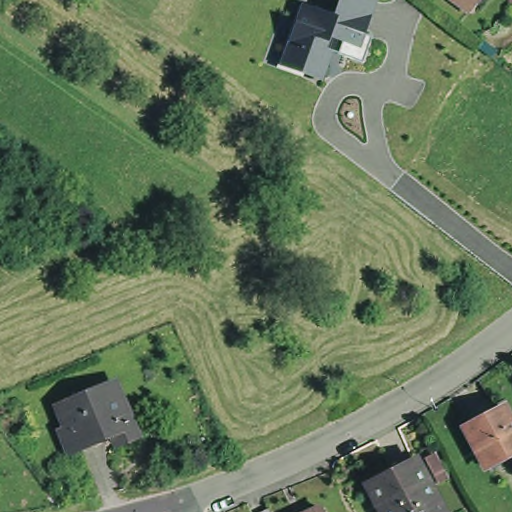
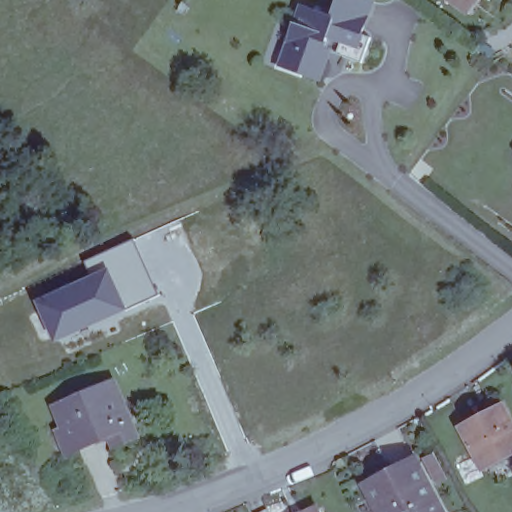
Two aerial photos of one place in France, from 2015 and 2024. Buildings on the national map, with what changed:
unchanged [(362,64),(338,57),(341,45),(337,43),(327,83),(279,69),(298,2),(330,10),(334,0),(374,0),(378,1),(362,64)]
unchanged [(458,0),(482,0),(474,11),(458,0)]
new [(133,238),(160,295),(128,309),(108,267),(90,274),(83,260),(133,238)]
new [(90,274),(108,267),(128,309),(53,342),(34,299),(90,274)]
unchanged [(115,373),(137,424),(115,433),(110,423),(67,441),(59,421),(65,419),(56,397),(115,373)]
unchanged [(512,428),(512,459),(485,473),(464,433),(503,412),(512,428)]
unchanged [(440,512),(379,512),(368,491),(417,467),(440,512)]
unchanged [(321,512),(312,512),(320,508),(321,512)]

